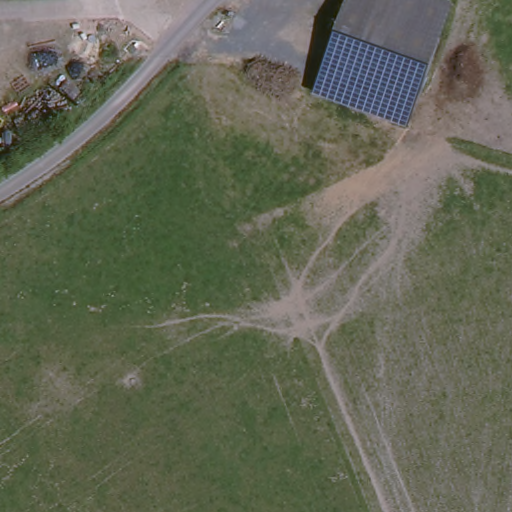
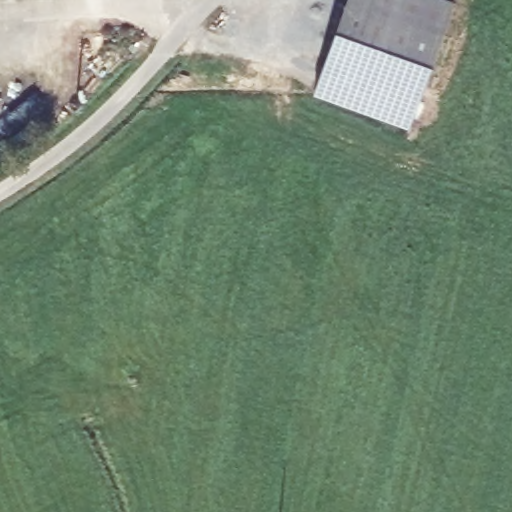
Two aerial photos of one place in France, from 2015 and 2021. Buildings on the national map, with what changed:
unchanged [(313,87),(346,0),(455,0),(409,123),(313,87)]

